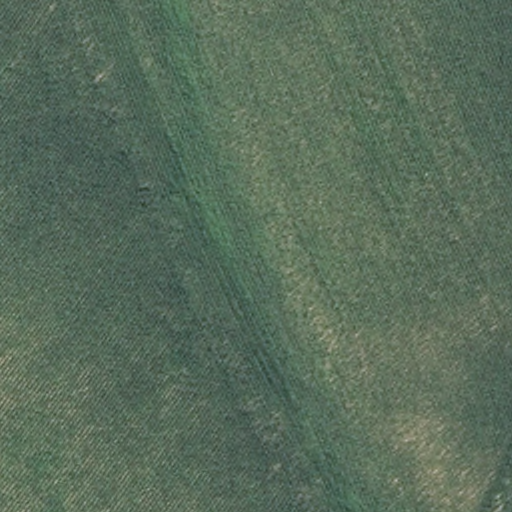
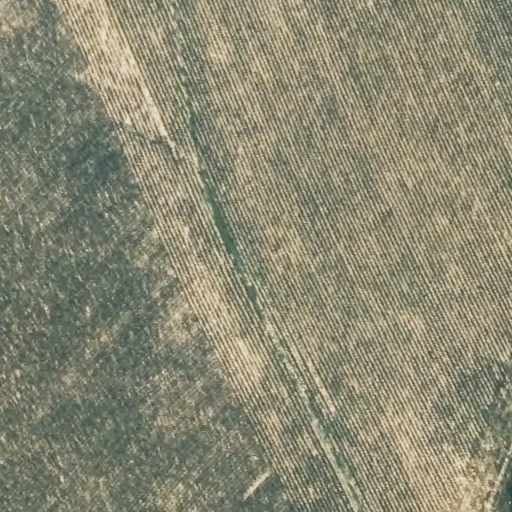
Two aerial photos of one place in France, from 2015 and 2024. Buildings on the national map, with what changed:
[]

